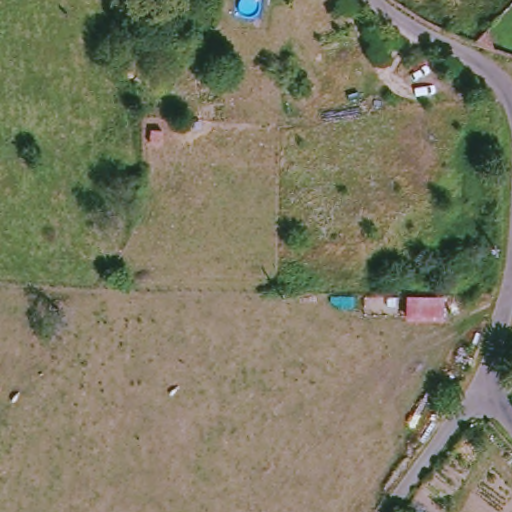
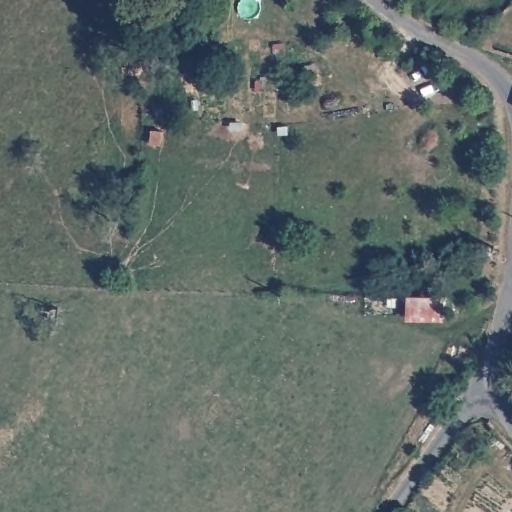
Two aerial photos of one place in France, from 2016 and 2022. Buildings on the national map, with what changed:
unchanged [(445,302),(443,320),(408,317),(409,300),(445,302)]

